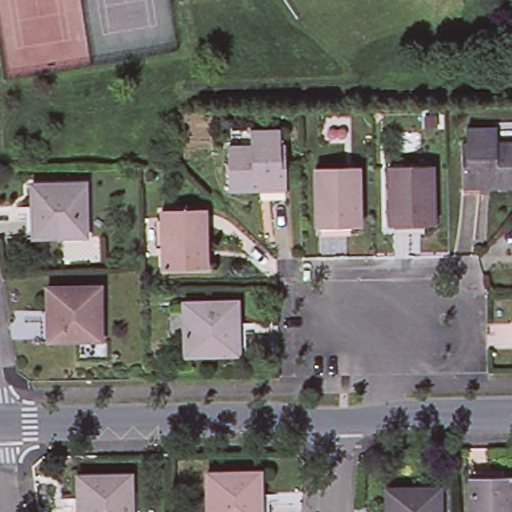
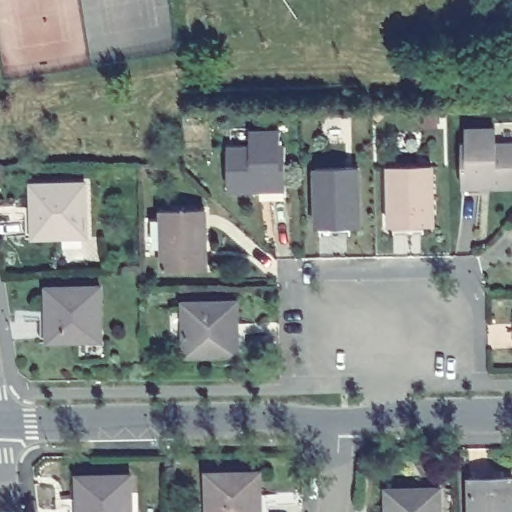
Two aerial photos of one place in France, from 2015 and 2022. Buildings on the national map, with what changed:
unchanged [(467,140),(471,140),(471,125),(494,125),(501,125),(501,140),(512,139),(512,182),(468,183),(467,140)]
unchanged [(281,147),(285,147),(286,189),(228,190),(228,147),(251,147),(250,132),(256,132),(280,132),(281,147)]
unchanged [(434,226),(390,227),(389,167),(433,166),(434,226)]
unchanged [(359,167),(360,227),(316,229),(316,169),(359,167)]
unchanged [(86,232),(33,233),(31,180),(85,178),(86,232)]
unchanged [(211,265),(168,266),(166,206),(210,205),(211,265)]
unchanged [(100,287),(101,341),(48,342),(47,288),(100,287)]
unchanged [(238,355),(184,357),(183,303),(237,302),(238,355)]
unchanged [(261,512),(208,512),(207,474),(261,472),(261,512)]
unchanged [(512,472),(512,512),(475,512),(474,473),(512,472)]
unchanged [(131,476),(132,512),(78,512),(78,476),(131,476)]
unchanged [(440,489),(440,512),(387,512),(387,490),(440,489)]

